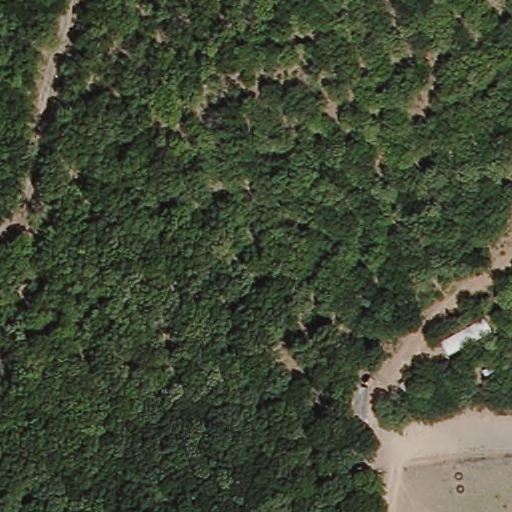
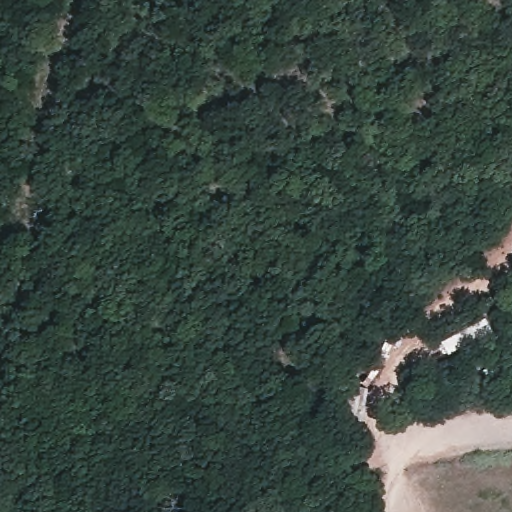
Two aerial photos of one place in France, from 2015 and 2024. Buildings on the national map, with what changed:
unchanged [(443,341),(485,317),(495,332),(450,355),(443,341)]
unchanged [(333,367),(343,396),(323,401),(313,371),(333,367)]

